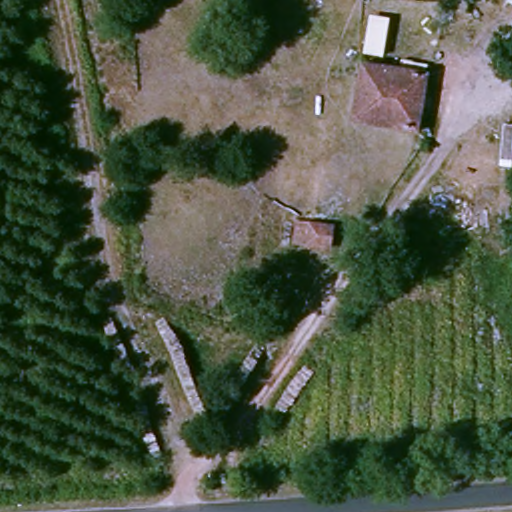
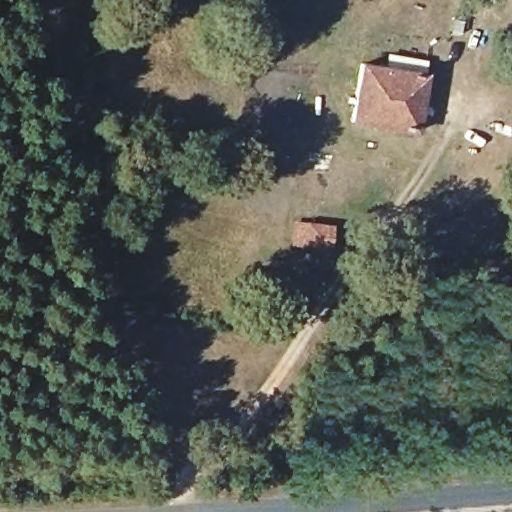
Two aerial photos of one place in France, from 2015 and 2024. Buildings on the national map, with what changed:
unchanged [(417,130),(362,125),(369,66),(422,74),(417,130)]
unchanged [(341,227),(341,249),(307,249),(309,226),(327,224),(341,227)]

